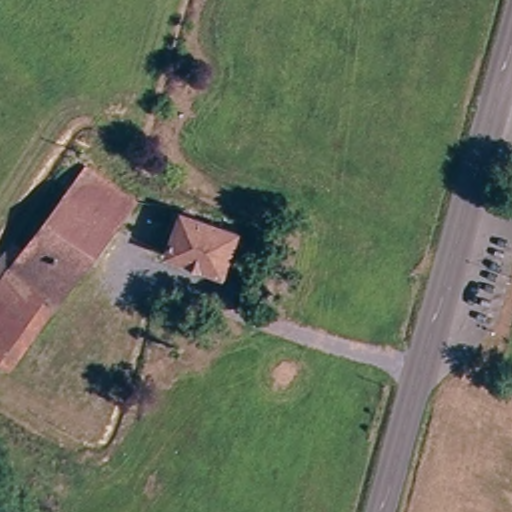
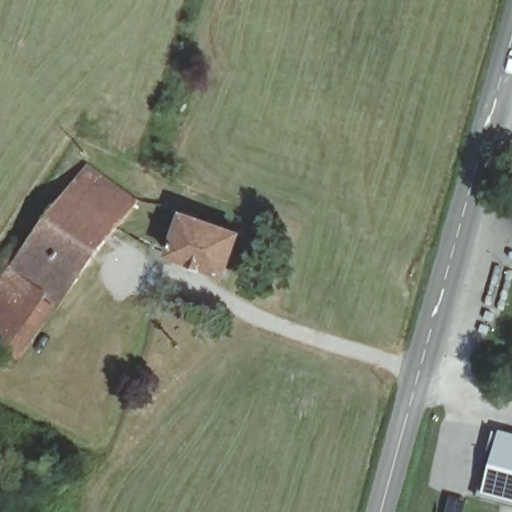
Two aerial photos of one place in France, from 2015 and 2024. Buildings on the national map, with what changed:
unchanged [(11,249),(24,255),(90,170),(135,204),(56,316),(41,306),(42,299),(0,268),(0,265),(11,249)]
unchanged [(169,252),(183,211),(237,232),(223,272),(169,252)]
unchanged [(42,299),(41,306),(29,324),(15,315),(0,334),(0,268),(42,299)]
unchanged [(15,315),(29,324),(36,329),(5,370),(0,366),(0,334),(15,315)]
new [(512,506),(484,499),(500,433),(512,436),(512,506)]

